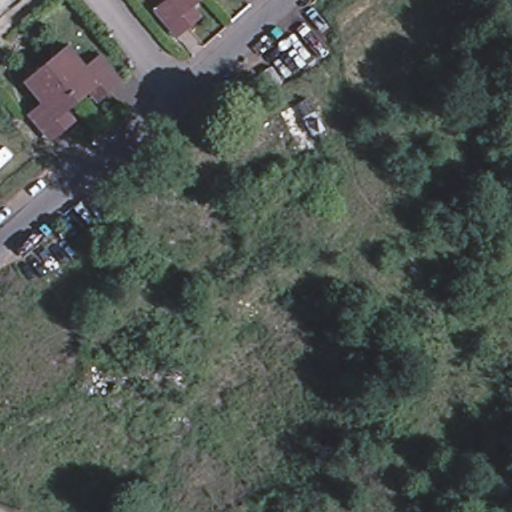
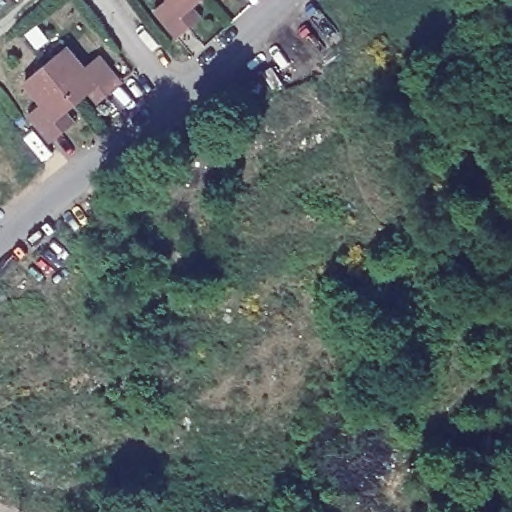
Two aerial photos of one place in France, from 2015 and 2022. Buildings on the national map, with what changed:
unchanged [(172,35),(149,6),(155,0),(191,0),(188,2),(197,14),(172,35)]
unchanged [(77,97),(46,60),(67,42),(86,62),(100,50),(122,78),(99,98),(89,88),(77,97)]
unchanged [(51,138),(27,111),(42,99),(25,77),(46,60),(77,97),(67,106),(76,117),(51,138)]

